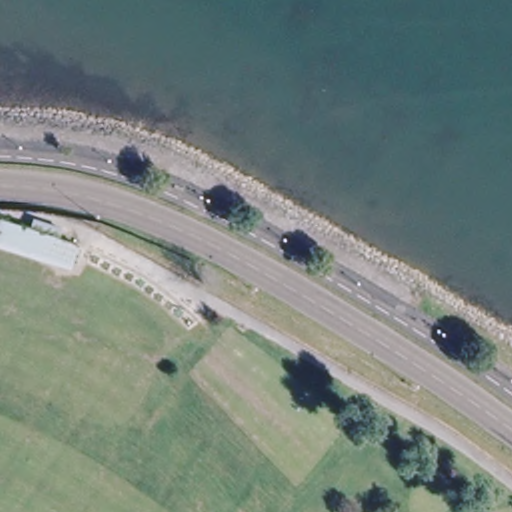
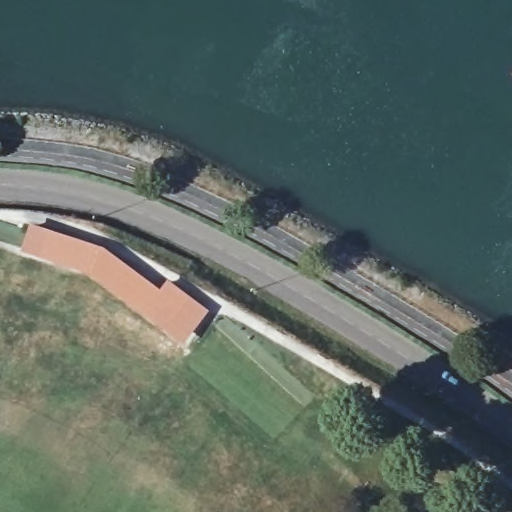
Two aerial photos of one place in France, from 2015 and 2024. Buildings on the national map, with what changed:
demolished [(0,220),(80,247),(73,270),(0,247),(0,220)]
new [(91,275),(22,252),(31,225),(100,247),(160,289),(167,280),(209,312),(184,345),(91,275)]

